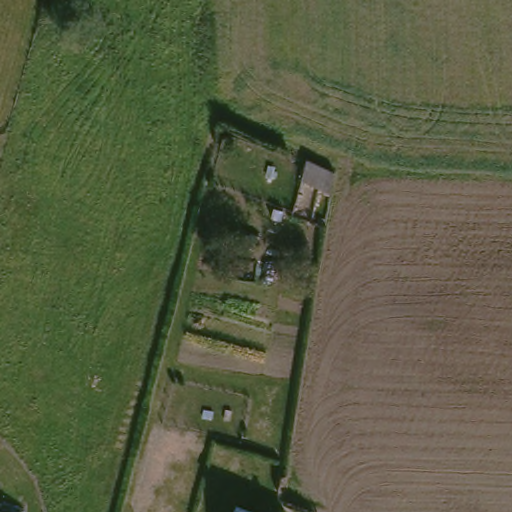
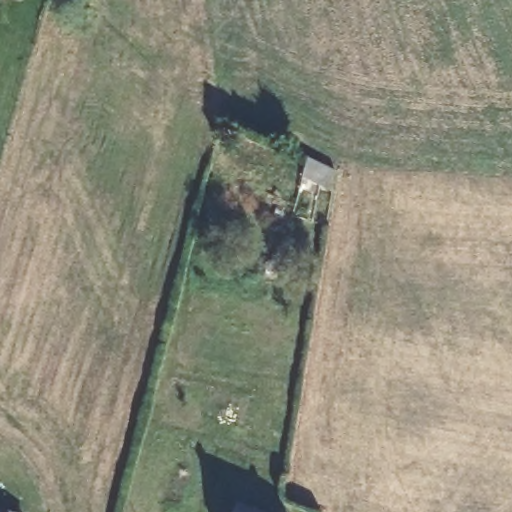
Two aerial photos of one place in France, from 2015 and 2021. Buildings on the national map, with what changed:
unchanged [(237,508),(245,512),(235,512),(237,508)]

